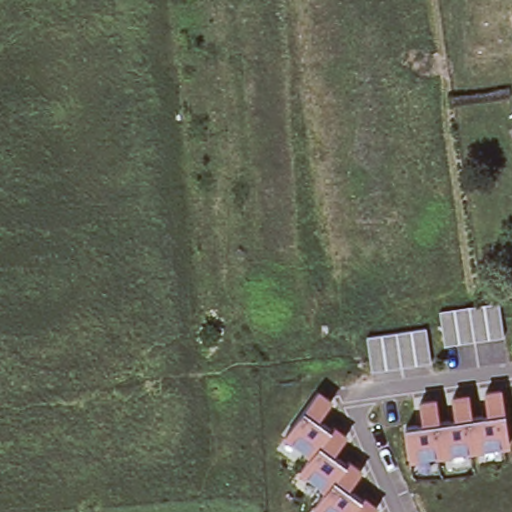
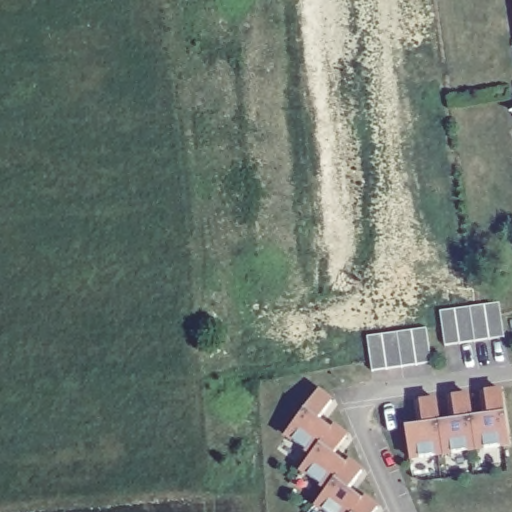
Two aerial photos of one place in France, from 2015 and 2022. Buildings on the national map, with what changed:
unchanged [(437,313),(478,307),(497,304),(502,339),(482,341),(442,347),(437,313)]
unchanged [(368,366),(364,338),(423,330),(427,357),(428,364),(369,373),(368,366)]
unchanged [(329,487),(303,467),(314,452),(288,432),(320,389),(334,399),(320,417),(333,426),(335,423),(349,433),(336,451),(348,461),(351,458),(364,468),(351,486),(365,497),(366,495),(380,505),(374,512),(331,512),(318,502),(329,487)]
unchanged [(408,429),(425,426),(422,404),(439,402),(442,424),(458,422),(455,400),(471,397),(475,419),(491,417),(487,395),(504,392),(512,446),(412,461),(408,429)]

